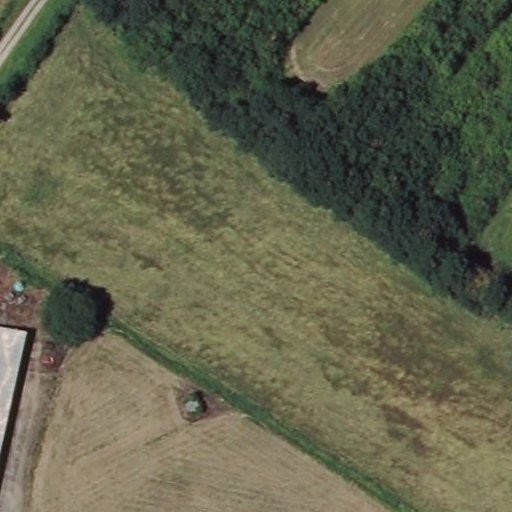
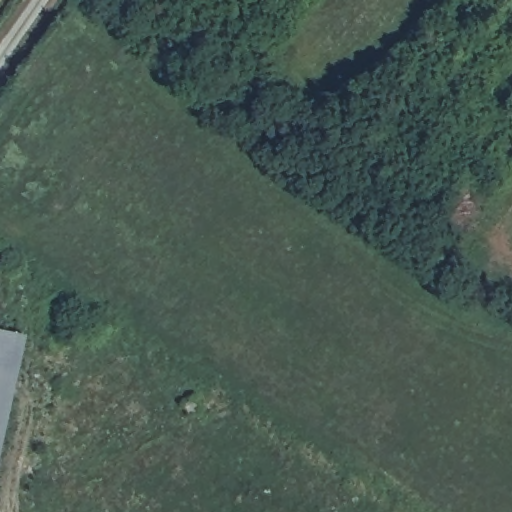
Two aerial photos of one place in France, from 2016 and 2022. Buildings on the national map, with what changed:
unchanged [(24,333),(0,446),(0,328),(24,333)]

